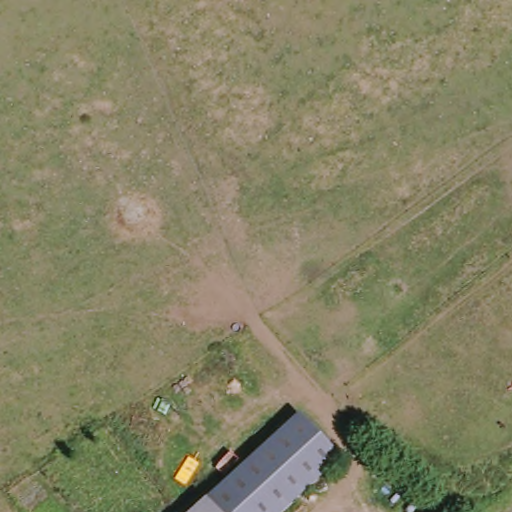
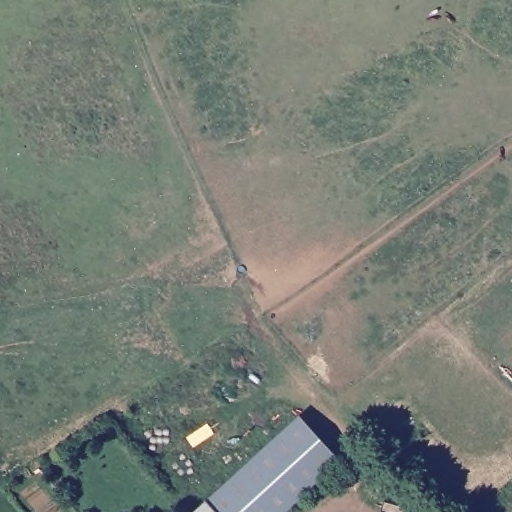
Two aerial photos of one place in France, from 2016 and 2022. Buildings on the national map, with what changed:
unchanged [(300,412),(342,458),(290,512),(194,512),(210,498),(300,412)]

